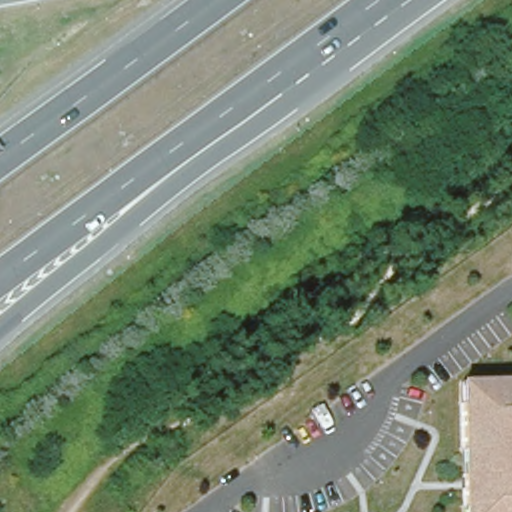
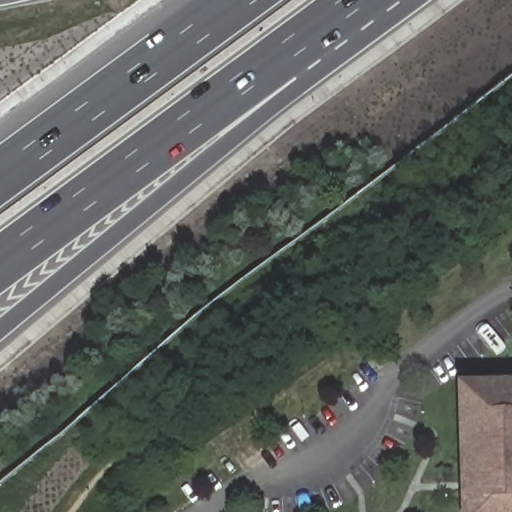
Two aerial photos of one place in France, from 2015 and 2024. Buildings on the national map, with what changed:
unchanged [(458,380),(512,379),(512,512),(462,512),(458,380)]

